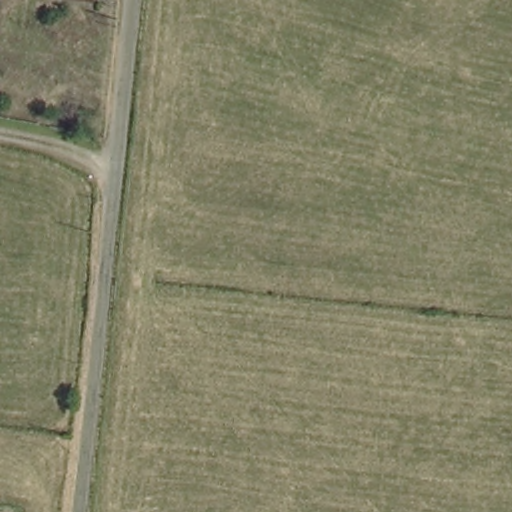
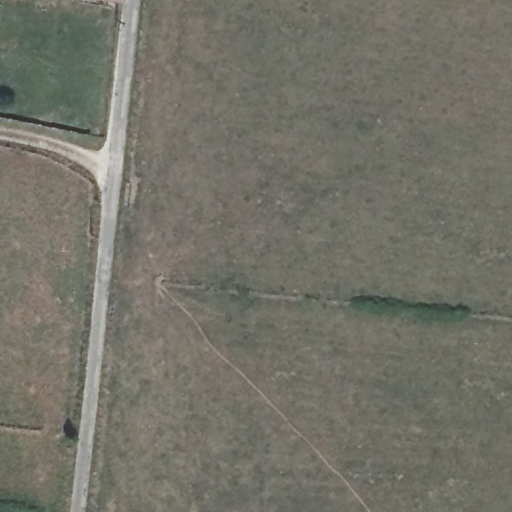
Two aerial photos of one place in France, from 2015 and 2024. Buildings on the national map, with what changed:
unchanged [(120,5),(95,0),(120,0),(120,5)]

